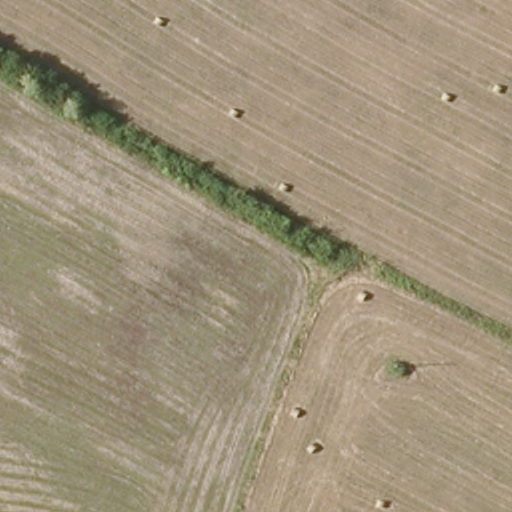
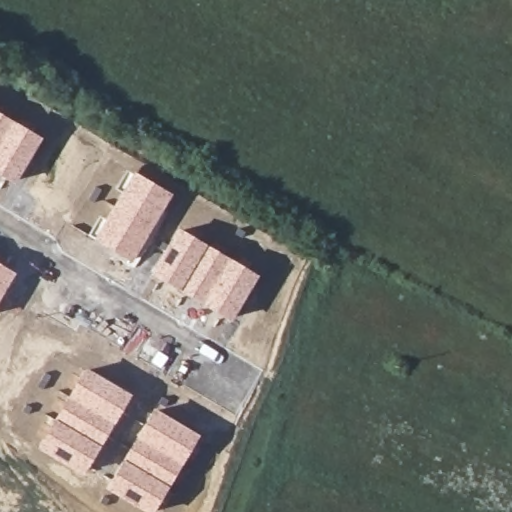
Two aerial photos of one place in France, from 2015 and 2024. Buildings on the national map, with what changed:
new [(15,184),(0,175),(0,113),(42,138),(15,184)]
new [(130,262),(93,240),(134,172),(171,195),(130,262)]
new [(231,321),(150,274),(177,227),(258,275),(231,321)]
new [(0,298),(0,265),(15,273),(0,298)]
new [(82,475),(37,448),(85,368),(131,395),(82,475)]
new [(145,512),(106,489),(152,408),(199,435),(154,512),(145,512)]

